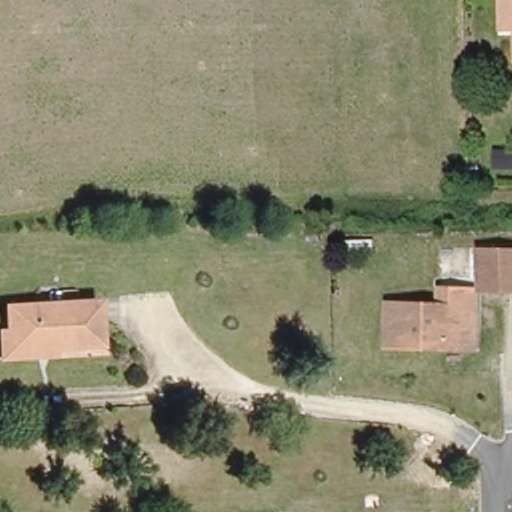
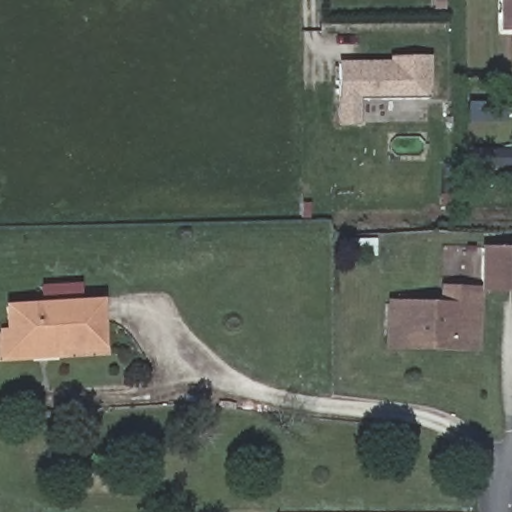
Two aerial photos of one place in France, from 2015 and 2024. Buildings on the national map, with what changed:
unchanged [(498,27),(497,0),(512,0),(512,27),(498,27)]
new [(433,55),(433,97),(359,99),(361,125),(338,126),(338,61),(388,60),(388,56),(433,55)]
new [(492,173),(493,167),(472,167),(472,148),(512,149),(512,173),(492,173)]
unchanged [(483,247),(512,247),(512,287),(484,287),(483,247)]
unchanged [(479,305),(478,350),(448,348),(388,345),(389,301),(442,303),(442,286),(470,287),(481,288),(479,305)]
unchanged [(4,355),(3,327),(14,327),(13,301),(100,300),(100,343),(59,344),(59,353),(4,355)]

